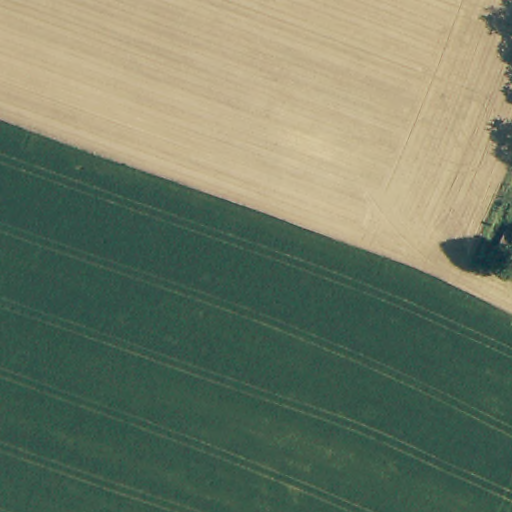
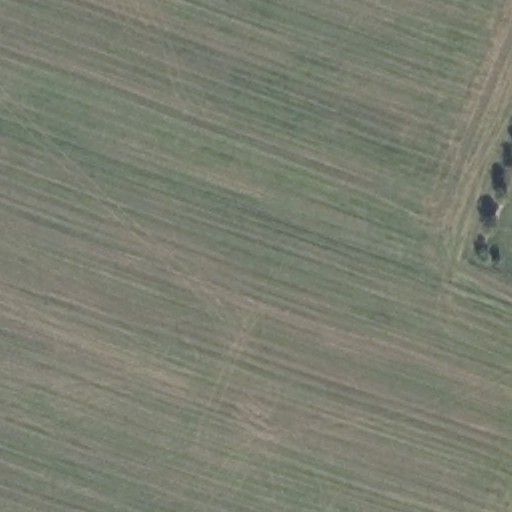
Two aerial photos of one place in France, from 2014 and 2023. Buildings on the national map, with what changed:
[]

